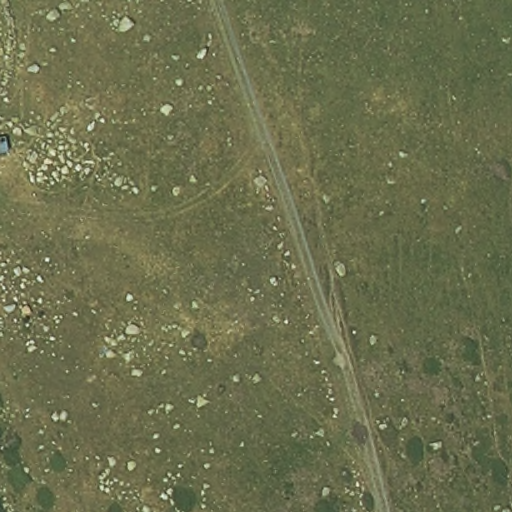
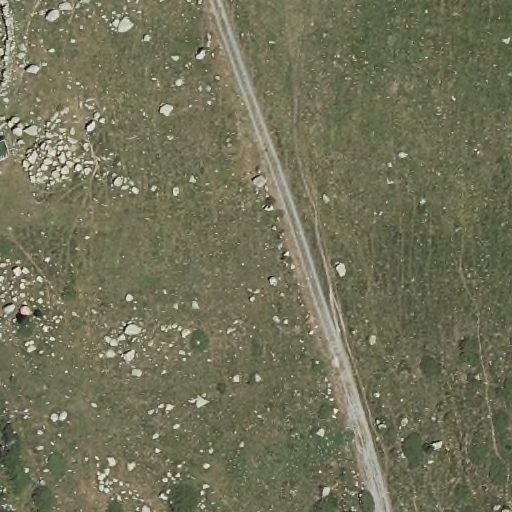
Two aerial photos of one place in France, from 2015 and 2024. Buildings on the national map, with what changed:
unchanged [(9,133),(12,149),(0,151),(0,135),(9,133)]

